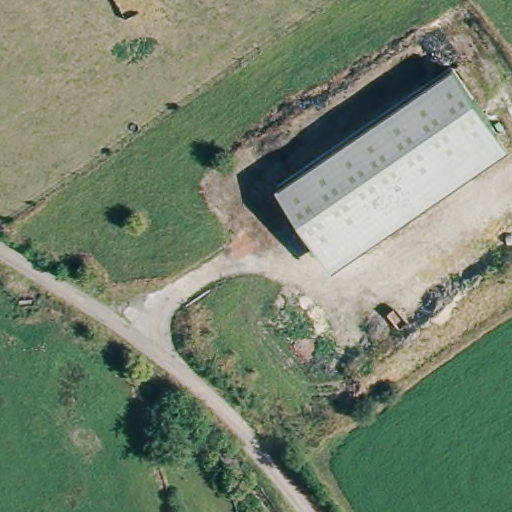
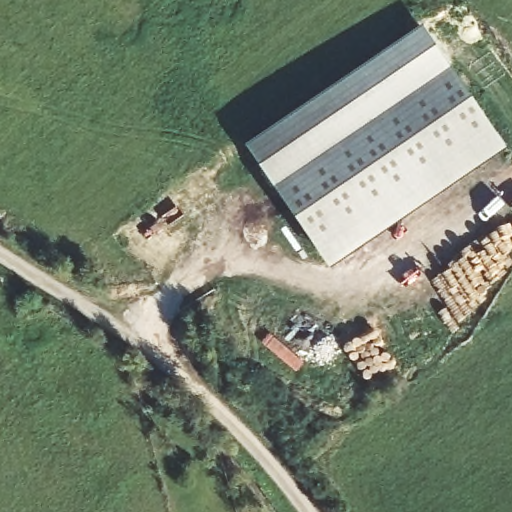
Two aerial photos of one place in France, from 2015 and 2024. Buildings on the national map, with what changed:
new [(248,147),(424,27),(454,68),(276,188),(248,147)]
unchanged [(508,147),(333,268),(276,188),(454,68),(508,147)]

